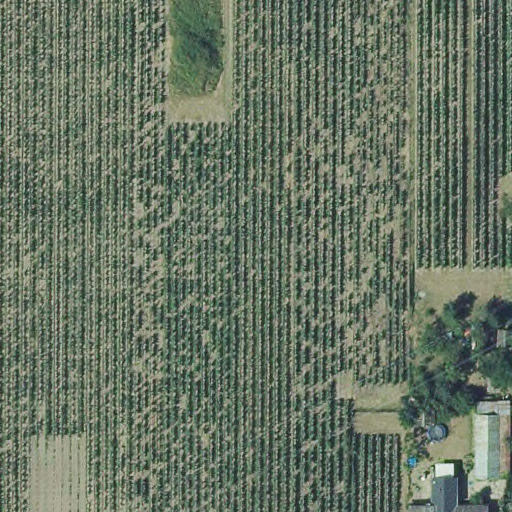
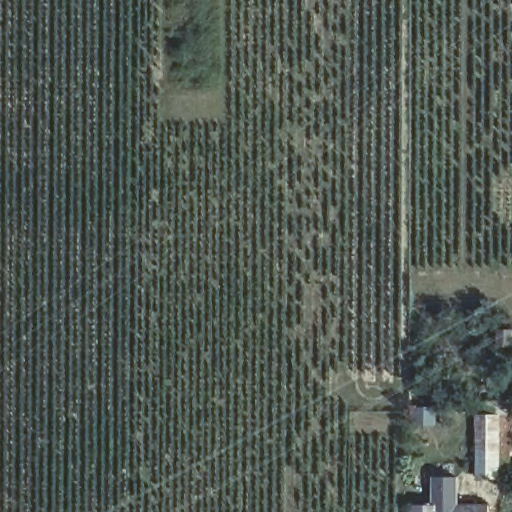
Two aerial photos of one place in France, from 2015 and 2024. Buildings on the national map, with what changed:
unchanged [(491,482),(470,482),(472,422),(491,422),(491,482)]
unchanged [(451,495),(451,509),(466,509),(486,509),(486,512),(410,512),(410,510),(426,510),(432,510),(432,496),(451,495)]

